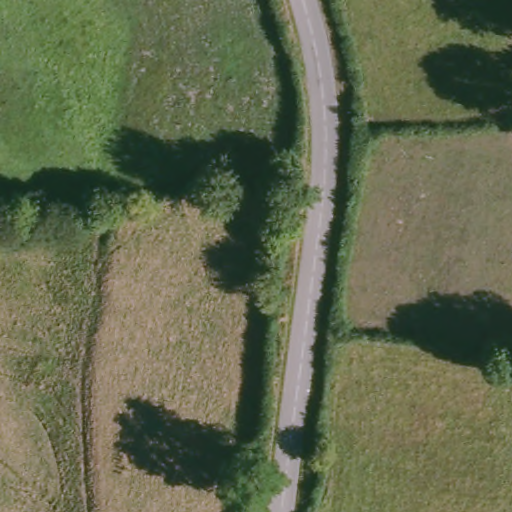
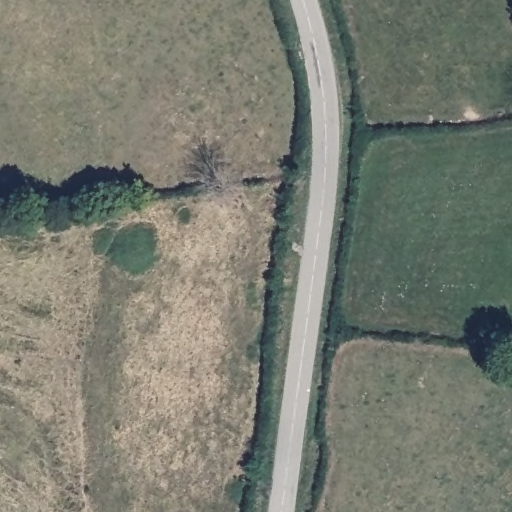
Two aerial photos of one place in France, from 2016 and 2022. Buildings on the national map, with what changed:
[]

